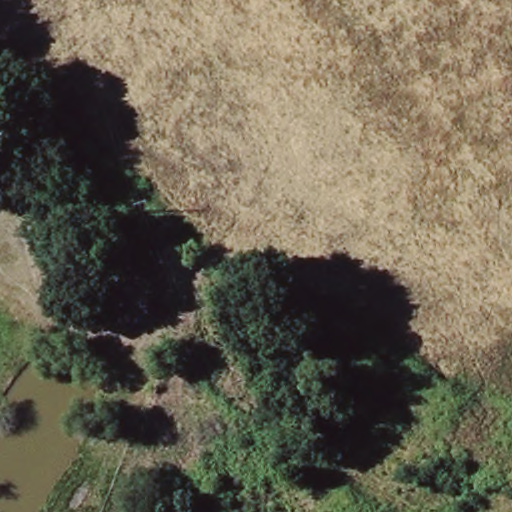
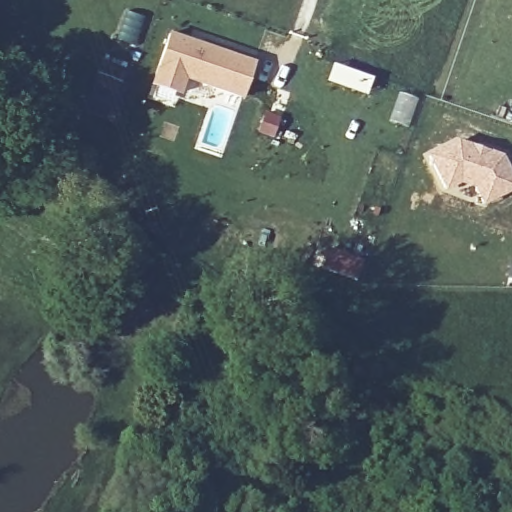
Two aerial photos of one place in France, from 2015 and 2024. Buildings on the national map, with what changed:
new [(186,39),(199,44),(250,62),(239,96),(154,67),(166,32),(186,39)]
new [(398,90),(420,97),(408,127),(388,119),(398,90)]
new [(512,120),(508,119),(512,108),(512,120)]
new [(458,139),(500,152),(508,165),(512,174),(512,191),(481,207),(465,184),(442,192),(423,153),(457,138),(458,139)]

